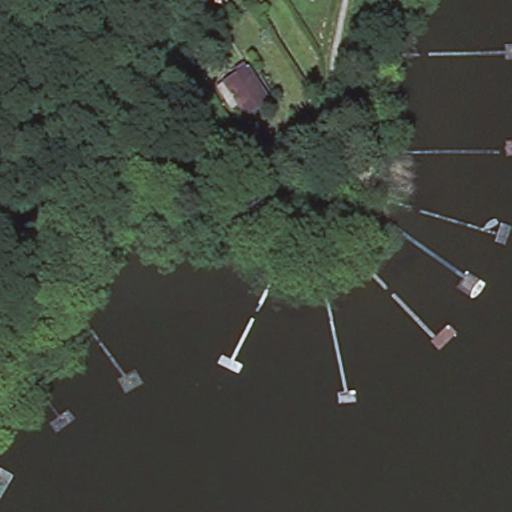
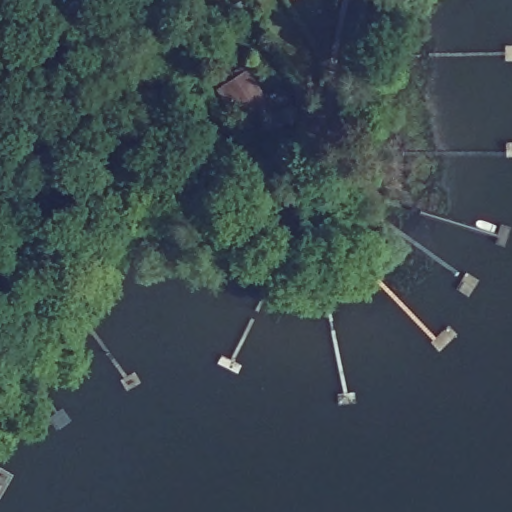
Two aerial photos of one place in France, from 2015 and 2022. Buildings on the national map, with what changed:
unchanged [(266,104),(238,122),(231,110),(217,88),(229,80),(226,75),(234,69),(238,75),(244,85),(251,80),(266,104)]

